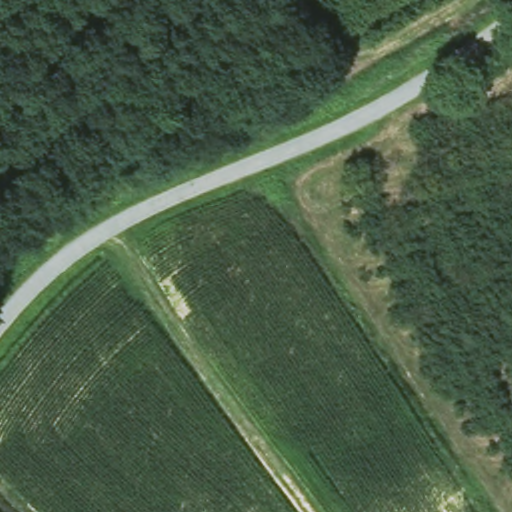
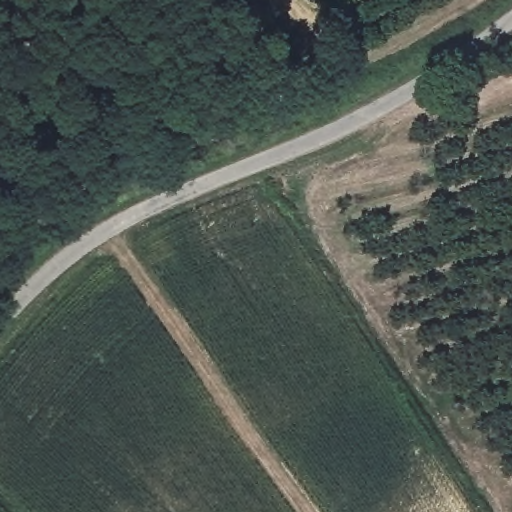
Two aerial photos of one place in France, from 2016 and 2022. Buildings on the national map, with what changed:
[]

